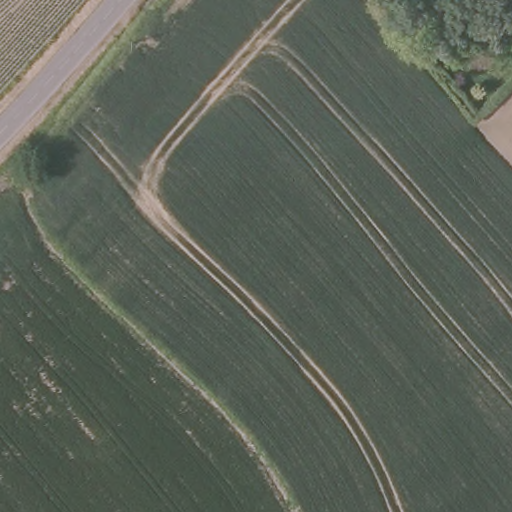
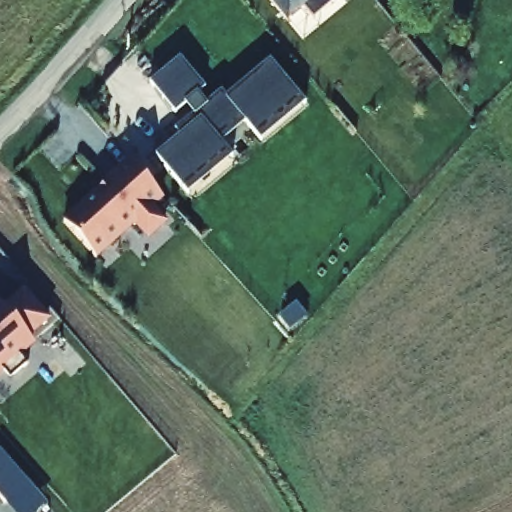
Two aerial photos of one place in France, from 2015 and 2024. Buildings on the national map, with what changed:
new [(302,9),(287,22),(269,0),(339,0),(313,21),(302,9)]
new [(175,115),(150,85),(180,60),(205,90),(175,115)]
new [(270,64),(269,64),(270,63),(305,105),(305,106),(300,101),(257,136),(262,143),(260,144),(242,120),(217,140),(232,159),(231,160),(227,154),(184,190),(189,195),(187,197),(155,158),(157,157),(157,159),(181,139),(175,132),(221,94),(227,100),(270,64)]
new [(97,195),(99,198),(111,187),(107,183),(130,163),(164,200),(152,210),(166,225),(149,240),(136,225),(97,260),(65,225),(97,195)]
new [(26,292),(49,318),(28,335),(32,340),(19,352),(29,364),(10,379),(0,368),(0,302),(6,309),(26,292)]
new [(0,495),(0,449),(27,481),(5,500),(0,495)]

